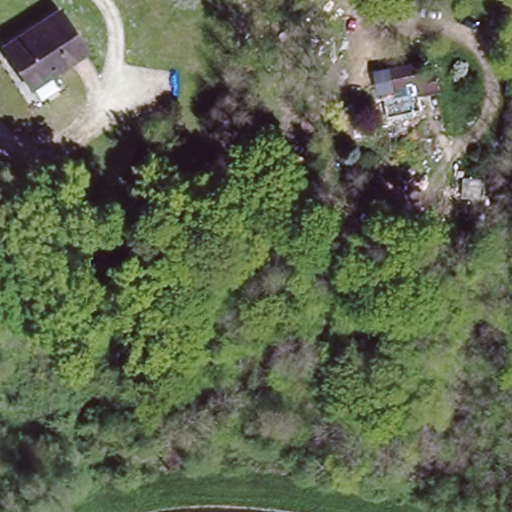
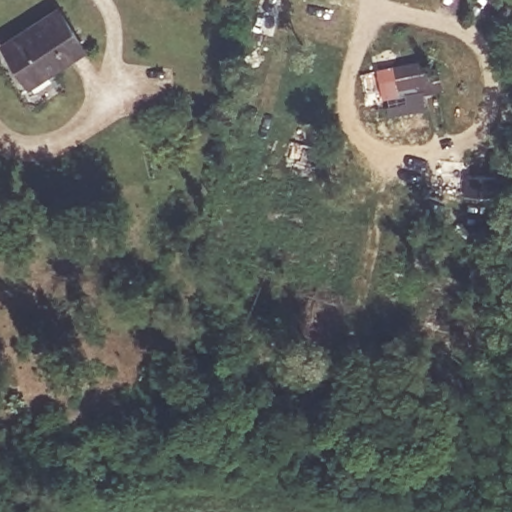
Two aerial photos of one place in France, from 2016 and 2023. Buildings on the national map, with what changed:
unchanged [(81,42),(81,48),(54,66),(49,59),(24,76),(2,42),(58,6),(81,42)]
unchanged [(415,61),(416,67),(433,65),(436,86),(413,89),(412,82),(374,90),(373,65),(415,61)]

